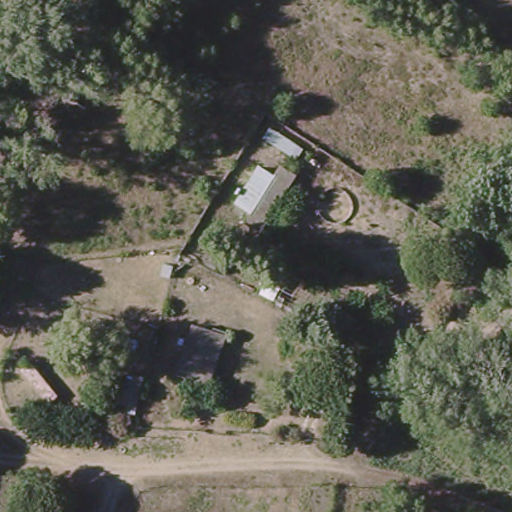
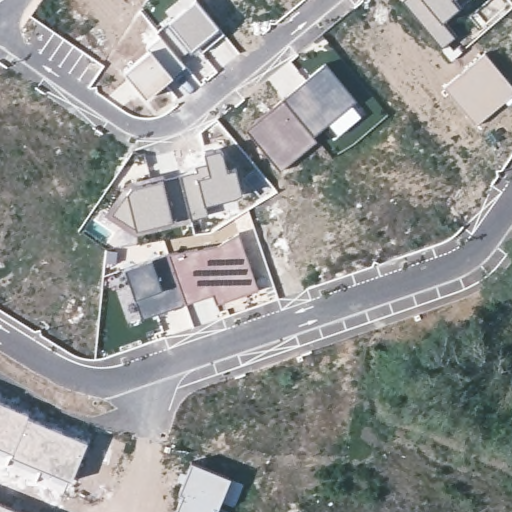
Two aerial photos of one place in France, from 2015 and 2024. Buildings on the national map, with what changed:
new [(191,0),(196,0),(219,29),(186,53),(163,26),(191,0)]
new [(403,0),(455,0),(460,5),(442,21),(455,37),(450,41),(442,49),(402,1),(403,0)]
new [(163,37),(186,66),(173,76),(146,98),(124,72),(151,49),(163,37)]
new [(485,52),(512,85),(512,95),(477,126),(444,87),(485,52)]
new [(283,100),(325,62),(356,101),(314,135),(283,100)]
new [(282,99),(314,136),(317,140),(281,170),(248,130),(282,99)]
new [(196,170),(195,167),(206,163),(204,152),(221,147),(228,167),(236,166),(242,194),(205,204),(207,214),(191,217),(181,175),(196,170)]
demolished [(243,210),(222,199),(252,162),(267,171),(243,210)]
new [(133,186),(163,178),(173,220),(135,229),(131,217),(126,196),(125,191),(133,186)]
new [(112,212),(126,195),(126,196),(131,218),(135,229),(112,212)]
new [(172,252),(216,244),(241,233),(261,292),(218,307),(213,295),(191,303),(185,304),(178,283),(168,253),(172,252)]
new [(152,259),(163,288),(178,283),(185,304),(141,318),(125,268),(152,259)]
new [(10,455),(0,450),(0,400),(28,415),(10,455)]
new [(26,419),(88,443),(71,480),(10,455),(26,419)]
new [(179,493),(192,462),(231,478),(221,501),(218,510),(215,508),(213,512),(173,512),(181,494),(179,493)]
new [(0,512),(0,502),(24,512),(0,512)]

